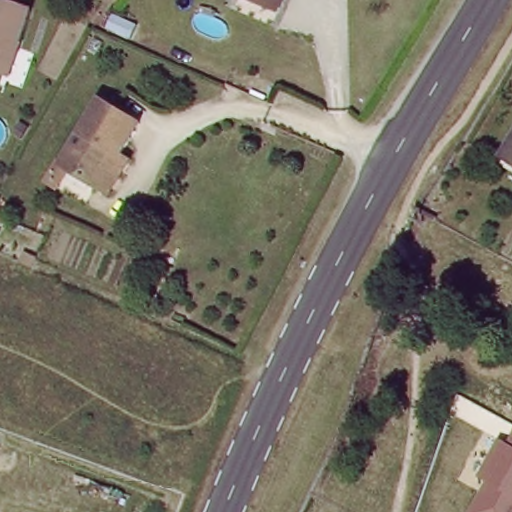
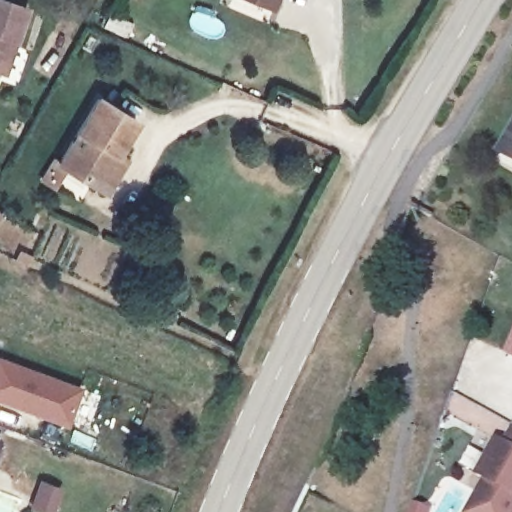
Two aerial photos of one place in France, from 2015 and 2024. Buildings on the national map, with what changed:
unchanged [(6,71),(0,69),(0,0),(11,0),(28,6),(6,71)]
unchanged [(268,0),(265,6),(248,0),(268,0)]
unchanged [(110,190),(96,182),(63,163),(101,95),(140,117),(122,150),(130,155),(110,190)]
unchanged [(500,154),(512,134),(512,161),(500,154)]
demolished [(39,181),(26,206),(8,196),(21,172),(39,181)]
unchanged [(0,223),(0,211),(5,214),(0,223)]
new [(512,342),(512,354),(507,351),(512,342)]
new [(68,427),(0,403),(0,357),(83,387),(68,427)]
unchanged [(483,481),(477,477),(497,437),(506,442),(512,430),(512,512),(469,512),(483,481)]
unchanged [(0,437),(2,437),(0,444),(0,437)]

